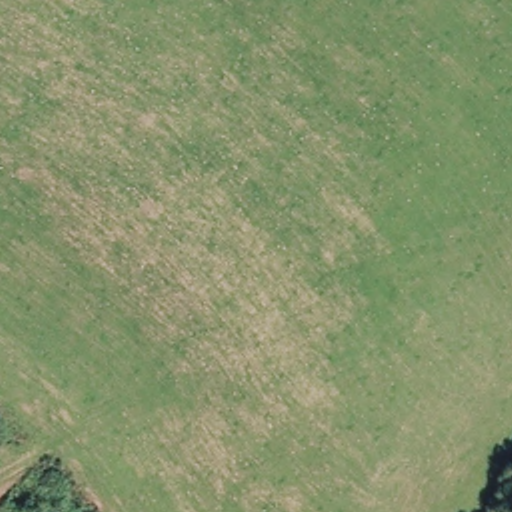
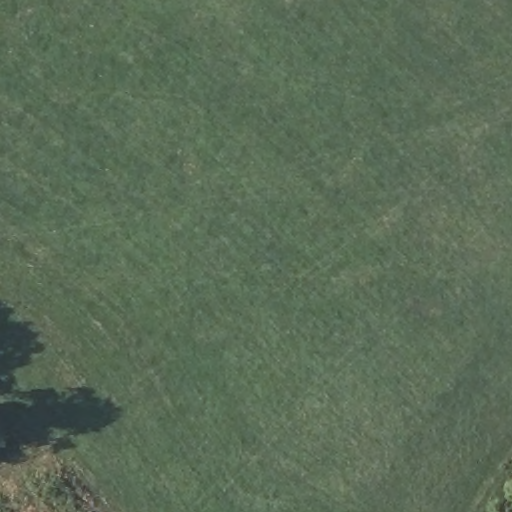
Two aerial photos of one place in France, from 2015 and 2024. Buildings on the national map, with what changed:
[]

